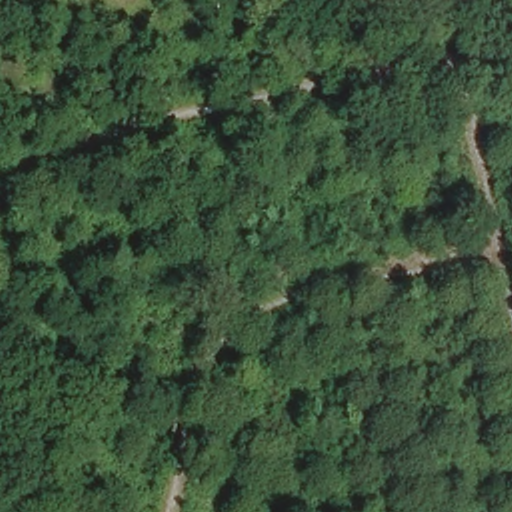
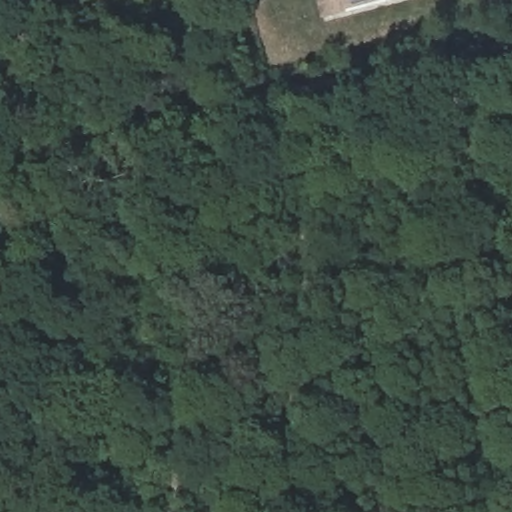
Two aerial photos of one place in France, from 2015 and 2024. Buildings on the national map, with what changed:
new [(345,11),(321,17),(317,0),(393,0),(345,11)]

